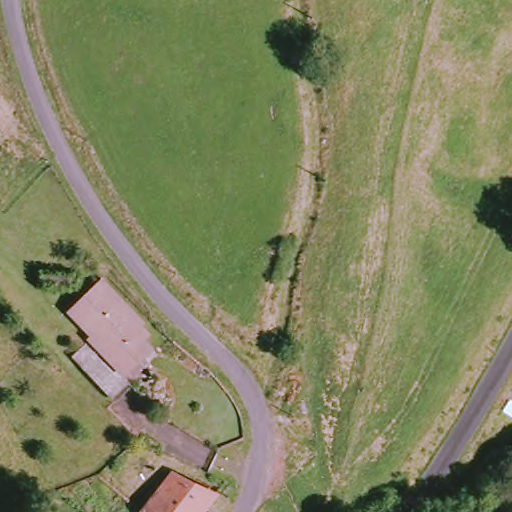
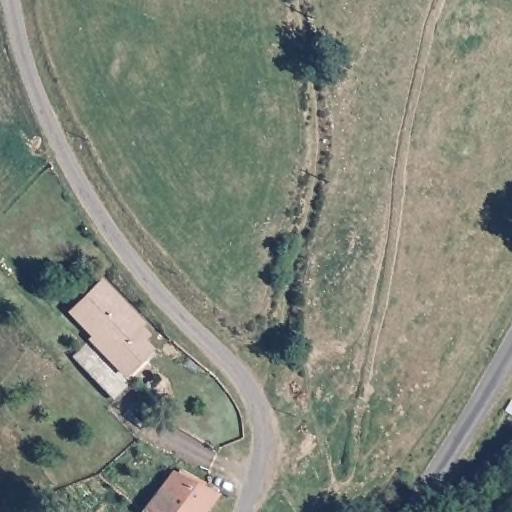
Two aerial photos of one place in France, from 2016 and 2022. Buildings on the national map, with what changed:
unchanged [(103,276),(149,319),(145,326),(154,334),(148,342),(155,348),(125,377),(89,338),(94,334),(72,311),(103,276)]
unchanged [(188,475),(227,492),(210,512),(153,512),(188,475)]

